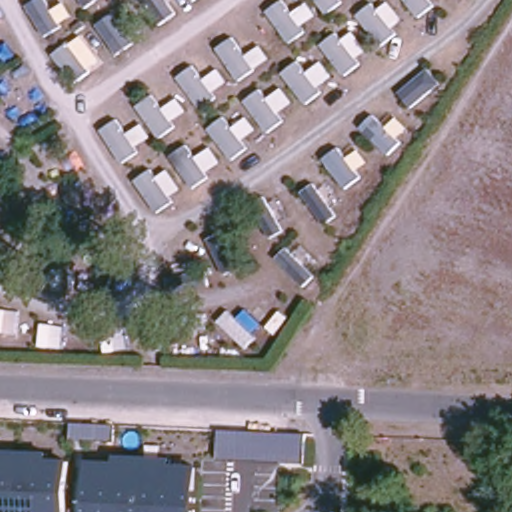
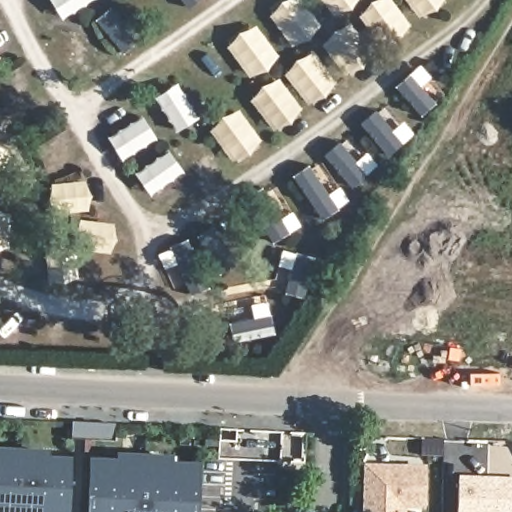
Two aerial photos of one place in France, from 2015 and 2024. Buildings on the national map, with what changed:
unchanged [(303,462),(217,460),(218,428),(306,433),(303,462)]
unchanged [(49,449),(48,457),(72,458),(69,512),(0,512),(0,447),(49,449)]
unchanged [(117,460),(117,452),(174,455),(172,462),(200,465),(197,512),(89,512),(93,458),(117,460)]
new [(398,512),(361,512),(362,467),(406,468),(420,468),(419,474),(418,505),(398,506),(398,512)]
new [(455,469),(512,470),(512,510),(454,508),(455,469)]

